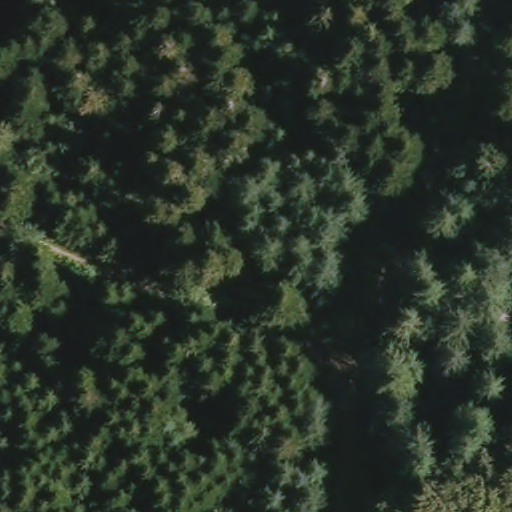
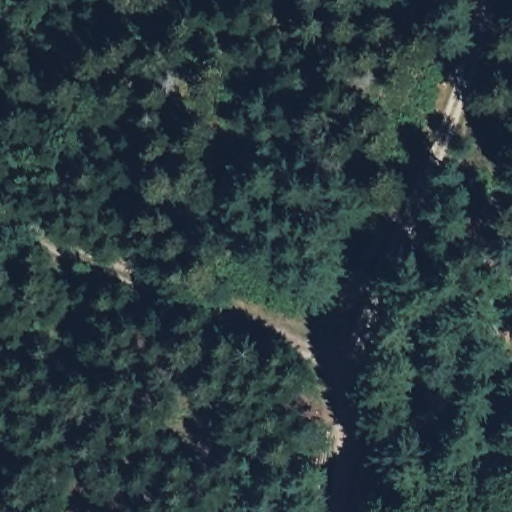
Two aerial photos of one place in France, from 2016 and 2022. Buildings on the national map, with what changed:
unchanged [(501,374),(470,380),(461,347),(492,341),(501,374)]

